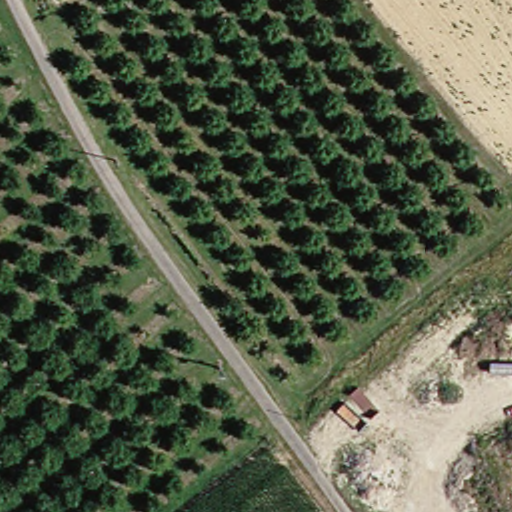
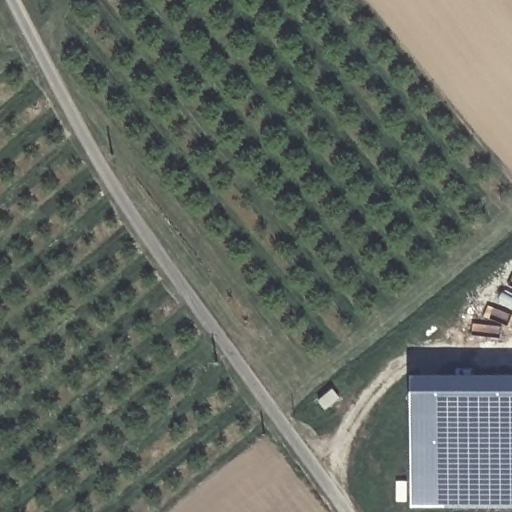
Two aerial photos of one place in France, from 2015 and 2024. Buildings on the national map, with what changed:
new [(411,376),(512,376),(512,508),(410,508),(411,376)]

